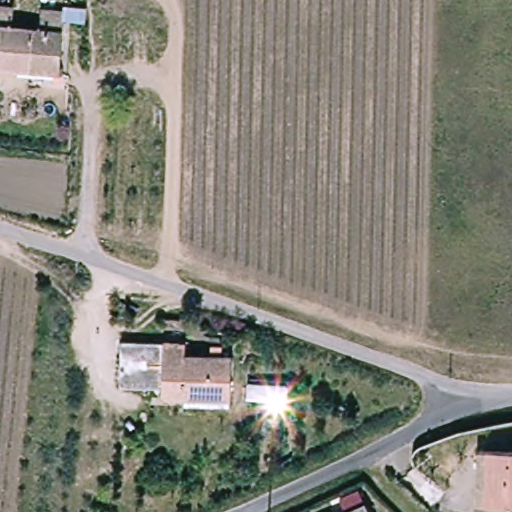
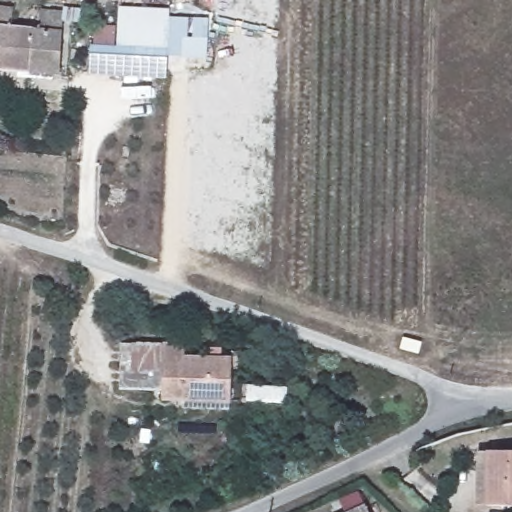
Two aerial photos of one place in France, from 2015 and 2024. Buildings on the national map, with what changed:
new [(94,46),(96,26),(118,27),(120,8),(169,11),(167,49),(94,46)]
unchanged [(12,32),(40,38),(44,17),(67,21),(59,83),(0,72),(0,10),(16,12),(12,32)]
new [(207,58),(166,54),(167,49),(169,18),(208,18),(207,58)]
new [(165,78),(88,76),(90,46),(167,49),(165,78)]
unchanged [(188,347),(188,365),(238,369),(234,408),(167,405),(166,395),(120,391),(124,343),(188,347)]
unchanged [(482,470),(492,470),(492,452),(512,453),(512,507),(492,507),(481,507),(482,470)]
unchanged [(370,512),(351,512),(367,505),(370,512)]

